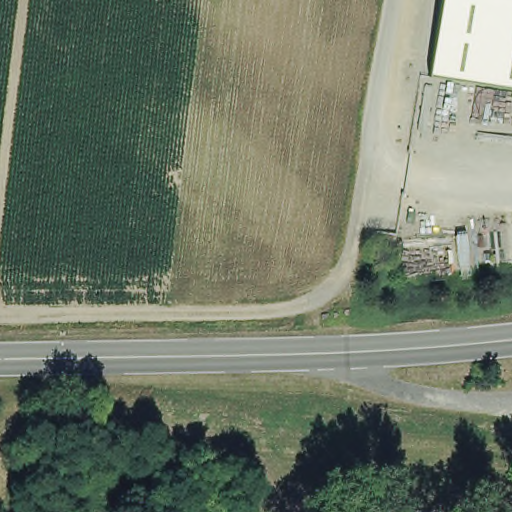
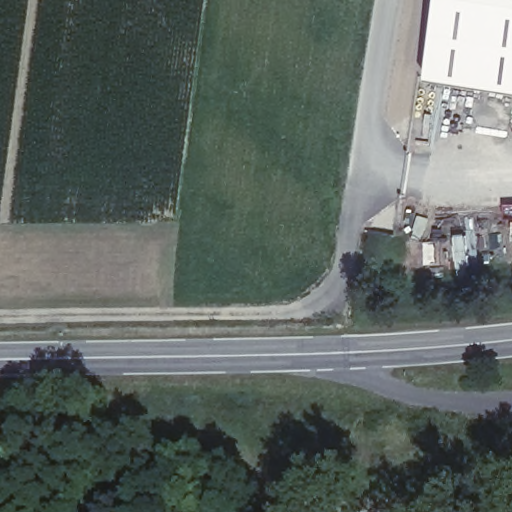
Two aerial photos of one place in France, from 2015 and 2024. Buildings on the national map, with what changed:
unchanged [(432,75),(443,0),(512,0),(512,88),(432,75)]

